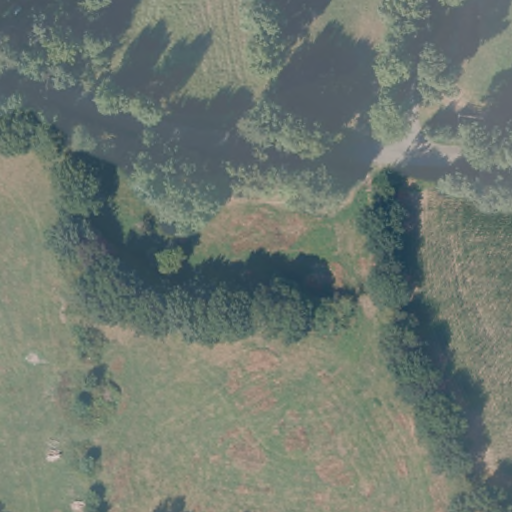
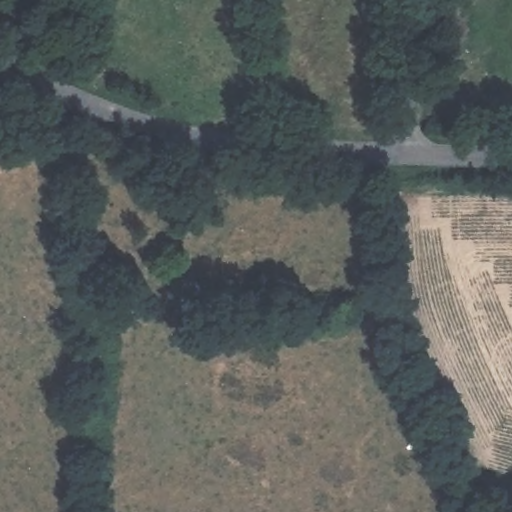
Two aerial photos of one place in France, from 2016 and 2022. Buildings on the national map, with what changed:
[]

